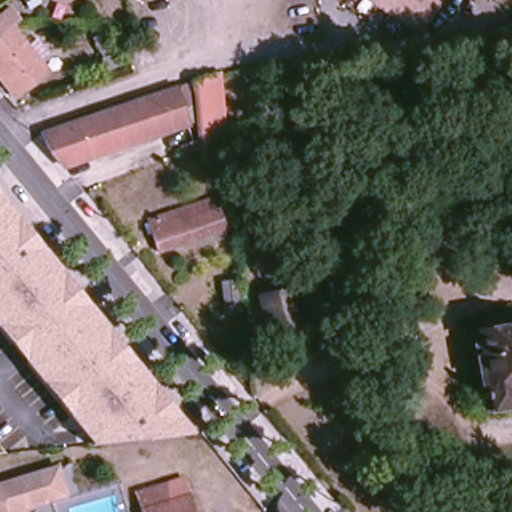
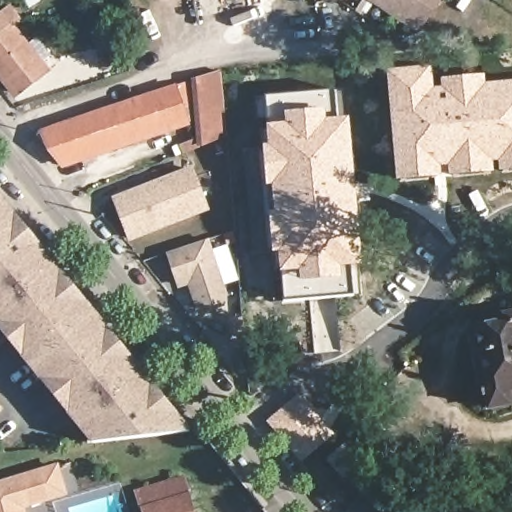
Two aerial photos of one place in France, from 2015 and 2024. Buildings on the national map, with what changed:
unchanged [(30,0),(41,0),(34,5),(30,0)]
unchanged [(374,0),(445,0),(423,32),(374,0)]
unchanged [(7,7),(25,29),(13,29),(1,39),(10,53),(0,61),(0,13),(7,7)]
unchanged [(10,53),(1,39),(13,29),(47,73),(15,97),(0,76),(0,61),(10,53)]
unchanged [(108,36),(118,54),(102,63),(92,43),(108,36)]
new [(441,79),(485,75),(485,84),(512,82),(512,171),(500,172),(499,162),(494,162),(494,172),(449,176),(448,167),(442,168),(442,177),(397,181),(387,71),(431,67),(433,89),(442,88),(441,79)]
unchanged [(227,136),(203,146),(198,80),(220,72),(227,136)]
unchanged [(175,83),(191,123),(60,167),(45,145),(42,130),(175,83)]
new [(349,118),(363,265),(350,266),(353,294),(283,300),(282,273),(280,253),(272,253),(263,145),(269,144),(267,124),(265,96),(333,91),(338,119),(349,118)]
unchanged [(182,147),(195,142),(198,148),(185,153),(182,147)]
new [(193,166),(210,209),(129,241),(112,196),(193,166)]
unchanged [(194,430),(90,442),(0,331),(0,191),(194,430)]
demolished [(216,199),(226,229),(162,252),(152,222),(216,199)]
new [(168,252),(209,238),(228,294),(225,306),(206,312),(196,306),(189,285),(179,288),(168,252)]
demolished [(248,310),(229,311),(226,277),(245,274),(248,310)]
demolished [(290,289),(300,324),(270,332),(261,298),(290,289)]
unchanged [(474,337),(502,332),(500,321),(512,320),(512,409),(487,413),(474,337)]
new [(298,395),(334,433),(301,463),(267,421),(298,395)]
unchanged [(27,510),(27,512),(0,512),(0,481),(58,465),(68,495),(27,510)]
unchanged [(137,491),(153,487),(151,480),(182,474),(189,498),(192,512),(142,512),(137,491)]

